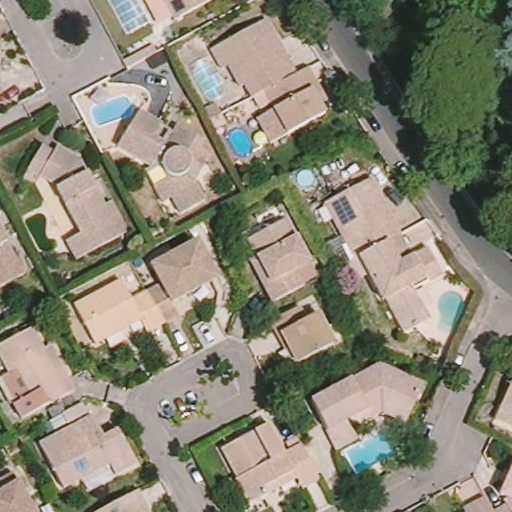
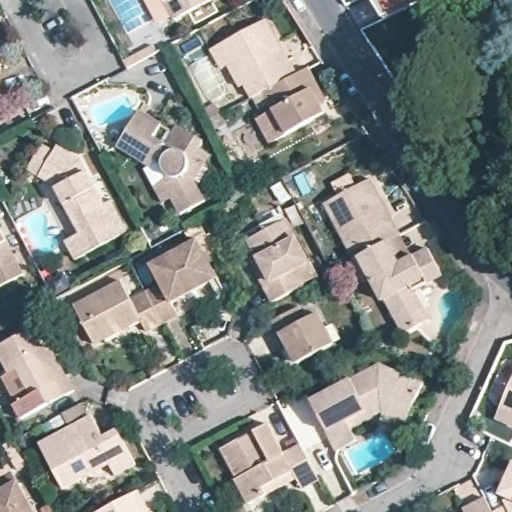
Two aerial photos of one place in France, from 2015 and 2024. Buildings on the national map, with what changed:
unchanged [(140,0),(210,0),(212,4),(176,23),(173,16),(153,26),(140,0)]
new [(385,22),(371,0),(429,0),(385,22)]
unchanged [(270,112),(262,95),(242,106),(215,45),(266,16),(294,70),(310,64),(323,87),(315,93),(326,115),(284,138),(270,112)]
unchanged [(0,82),(0,68),(4,69),(0,82)]
unchanged [(199,144),(196,150),(207,157),(192,180),(201,199),(177,212),(169,196),(173,194),(160,169),(163,165),(155,161),(151,168),(118,148),(141,113),(160,126),(173,134),(176,129),(199,144)]
unchanged [(67,246),(82,238),(58,192),(27,174),(40,151),(52,156),(54,151),(83,167),(106,210),(112,207),(128,235),(91,255),(77,263),(67,246)]
unchanged [(390,244),(361,259),(355,263),(325,206),(370,182),(380,202),(390,219),(400,239),(390,244)]
unchanged [(260,261),(251,242),(287,223),(311,266),(297,274),(305,288),(274,305),(265,289),(252,265),(260,261)]
unchanged [(0,290),(0,240),(22,279),(0,290)]
unchanged [(137,276),(199,243),(220,283),(174,306),(180,318),(164,327),(137,276)]
unchanged [(413,337),(390,303),(388,304),(361,259),(390,244),(400,262),(404,268),(431,252),(447,278),(433,286),(420,295),(437,322),(413,337)]
unchanged [(149,335),(143,324),(97,347),(77,308),(137,276),(164,327),(149,335)]
unchanged [(277,339),(269,324),(298,309),(305,324),(317,318),(334,350),(299,369),(289,352),(285,354),(277,339)]
unchanged [(35,386),(27,390),(17,372),(10,377),(0,358),(0,349),(32,332),(43,353),(50,350),(66,380),(74,395),(48,408),(35,386)]
unchanged [(385,402),(370,409),(373,414),(331,435),(315,404),(383,367),(425,387),(414,416),(385,402)]
unchanged [(27,390),(35,386),(48,408),(19,424),(9,406),(0,387),(0,381),(10,377),(17,372),(27,390)]
unchanged [(502,423),(507,412),(512,399),(512,428),(502,423)]
unchanged [(408,429),(384,418),(354,433),(360,446),(341,455),(331,435),(373,414),(370,409),(385,402),(414,416),(408,429)]
unchanged [(137,468),(115,480),(109,469),(62,493),(40,448),(96,418),(103,433),(107,440),(120,434),(137,468)]
unchanged [(254,509),(240,484),(245,481),(230,452),(261,436),(276,427),(293,456),(307,449),(326,484),(308,492),(305,484),(275,499),(254,509)]
unchanged [(510,504),(502,499),(508,486),(504,484),(509,474),(512,476),(512,512),(506,512),(504,507),(510,504)]
unchanged [(19,486),(33,512),(0,512),(0,485),(14,477),(19,486)]
unchanged [(146,511),(147,512),(105,512),(138,495),(146,511)]
unchanged [(462,512),(470,508),(485,501),(490,512),(462,512)]

